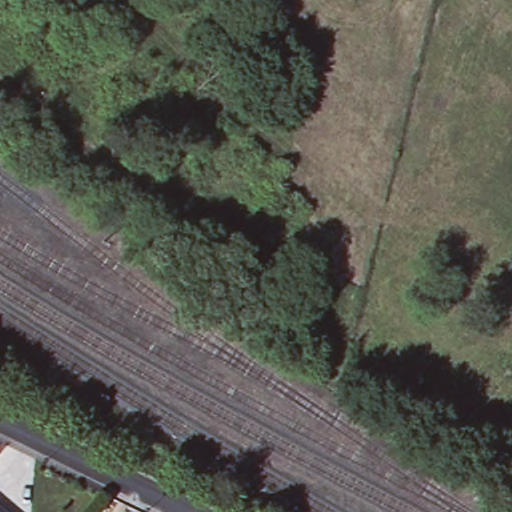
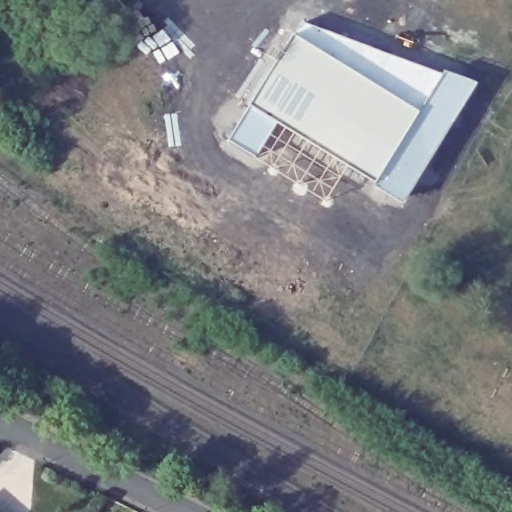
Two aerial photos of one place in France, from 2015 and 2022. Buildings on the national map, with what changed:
new [(477,82),(404,204),(374,186),(377,182),(279,121),(257,156),(229,140),(302,21),(477,82)]
unchanged [(0,511),(1,512),(0,512),(0,511)]

